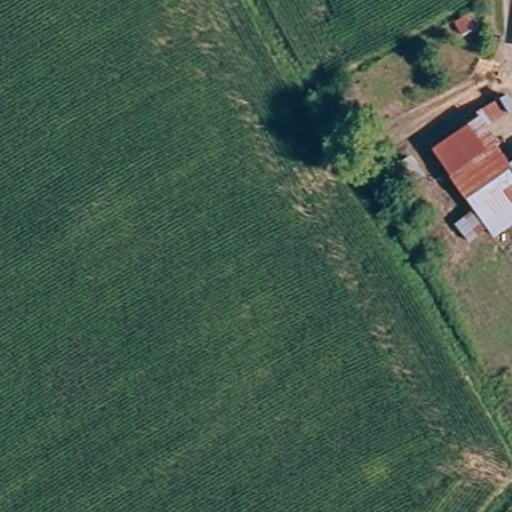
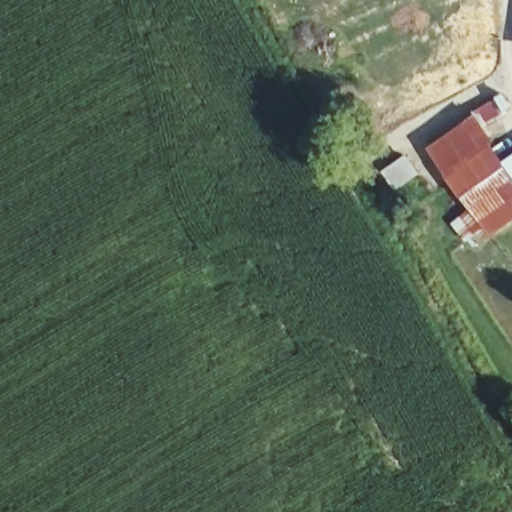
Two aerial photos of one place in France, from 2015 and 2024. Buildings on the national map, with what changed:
unchanged [(463,192),(432,148),(480,114),(512,163),(512,226),(493,238),(463,192)]

